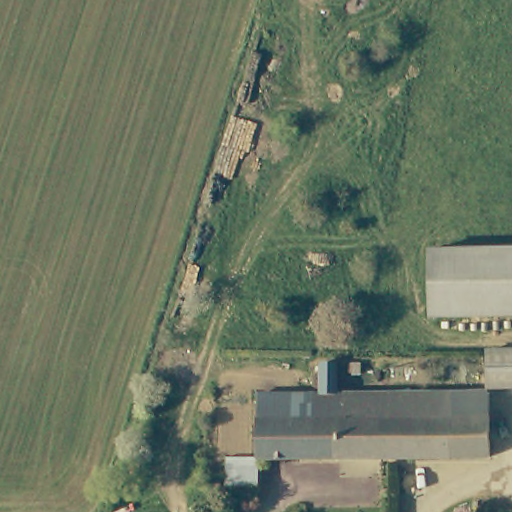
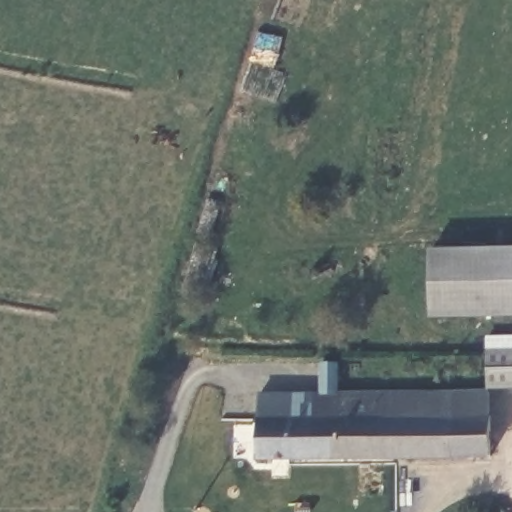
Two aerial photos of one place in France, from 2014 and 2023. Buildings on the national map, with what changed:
unchanged [(427,250),(512,248),(512,317),(429,320),(427,250)]
unchanged [(512,363),(490,364),(489,352),(512,351),(512,363)]
unchanged [(489,404),(487,455),(258,456),(258,415),(258,391),(322,390),(322,358),(344,358),(344,390),(489,389),(490,364),(512,363),(512,391),(511,391),(512,403),(489,404)]
unchanged [(258,456),(259,486),(230,488),(228,457),(258,456)]

